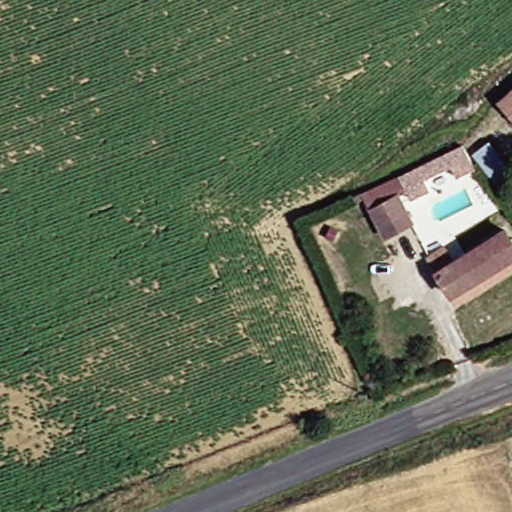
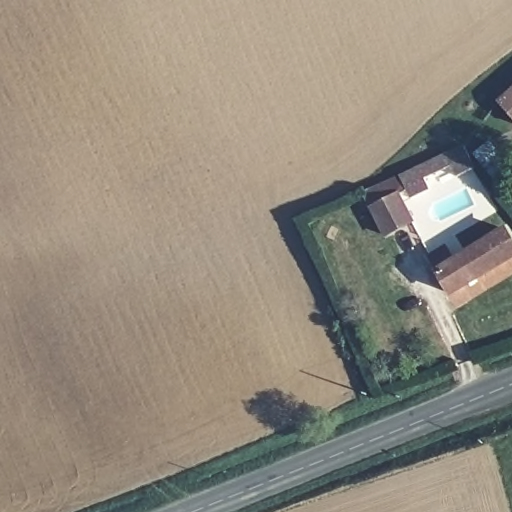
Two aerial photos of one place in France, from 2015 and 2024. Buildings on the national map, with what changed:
unchanged [(512,89),(512,122),(496,99),(512,89)]
unchanged [(455,150),(473,179),(453,187),(446,175),(418,185),(424,197),(406,205),(400,197),(392,202),(407,230),(378,241),(357,192),(455,150)]
unchanged [(444,250),(452,262),(501,225),(512,240),(512,253),(452,296),(436,273),(428,260),(444,250)]

